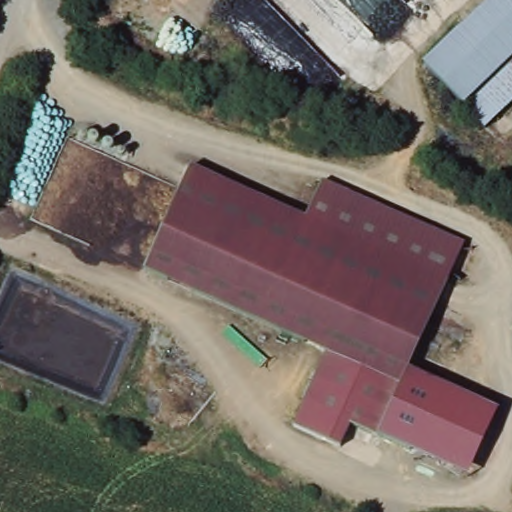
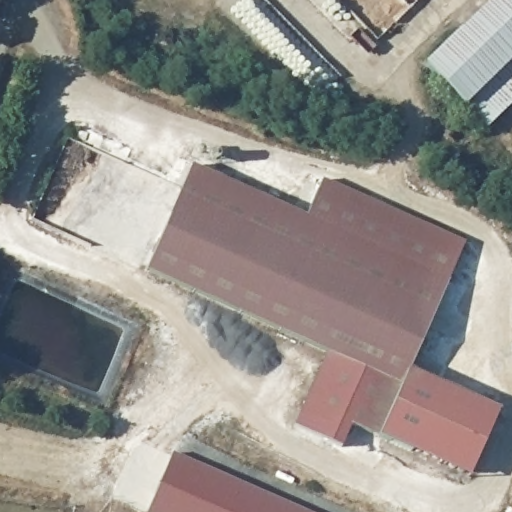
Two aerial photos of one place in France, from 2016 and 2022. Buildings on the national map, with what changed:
unchanged [(506,0),(512,6),(512,107),(486,131),(426,64),(491,0),(506,0)]
unchanged [(506,0),(512,0),(512,6),(506,0)]
unchanged [(323,351),(142,273),(188,165),(308,218),(447,278),(377,436),(351,425),(341,450),(290,424),(323,351)]
unchanged [(325,177),(463,240),(447,278),(308,218),(325,177)]
unchanged [(497,408),(467,474),(377,436),(407,368),(497,408)]
new [(172,454),(309,512),(147,512),(172,454)]

